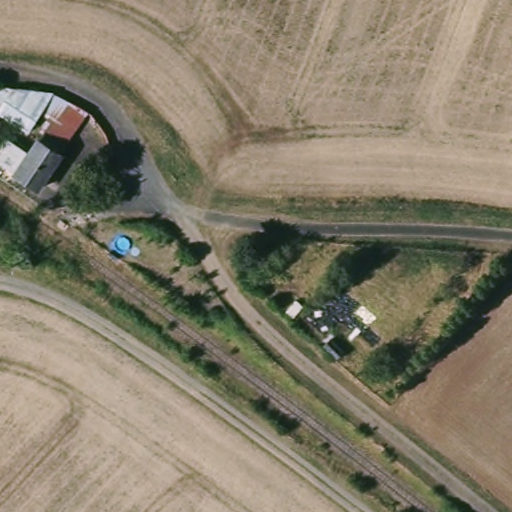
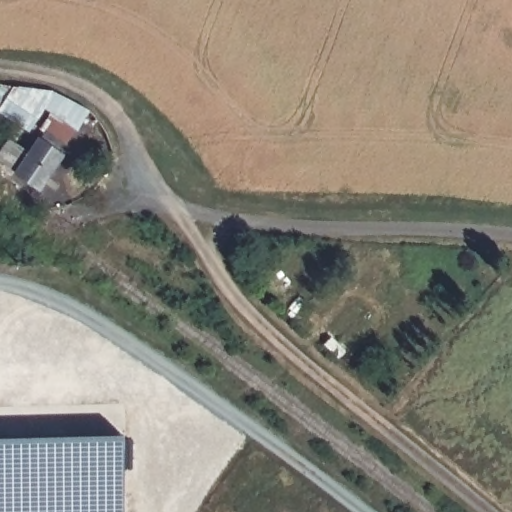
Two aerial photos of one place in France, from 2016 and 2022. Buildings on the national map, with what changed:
unchanged [(0,117),(0,96),(6,86),(32,88),(45,90),(54,92),(57,95),(79,111),(58,144),(38,131),(45,119),(38,115),(25,134),(0,117)]
unchanged [(31,188),(9,174),(34,139),(55,152),(31,188)]
new [(113,434),(117,512),(0,512),(0,438),(113,434)]

